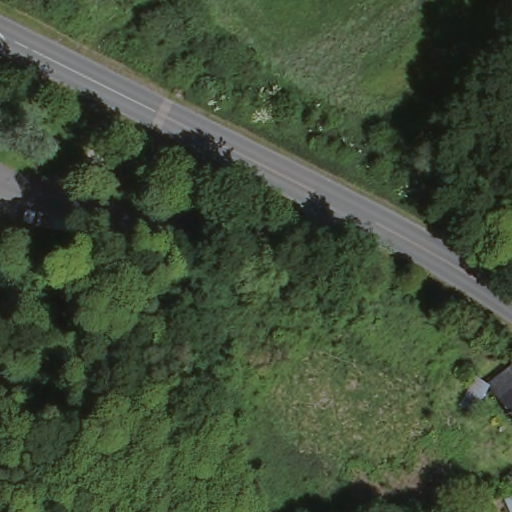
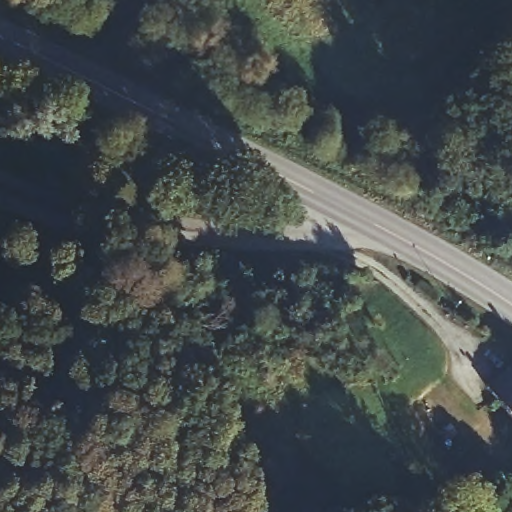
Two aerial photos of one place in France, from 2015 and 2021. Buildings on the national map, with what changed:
unchanged [(489,379),(512,362),(512,416),(489,379)]

